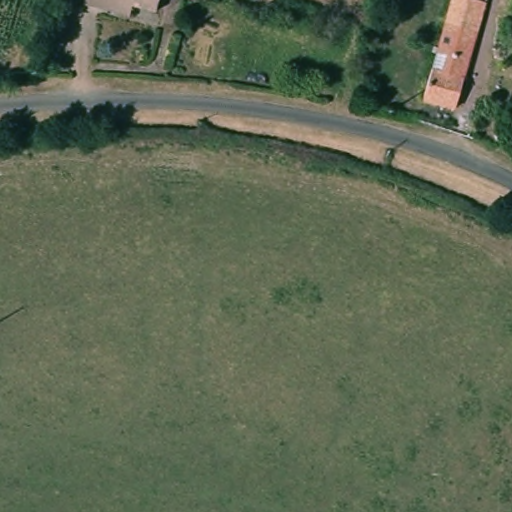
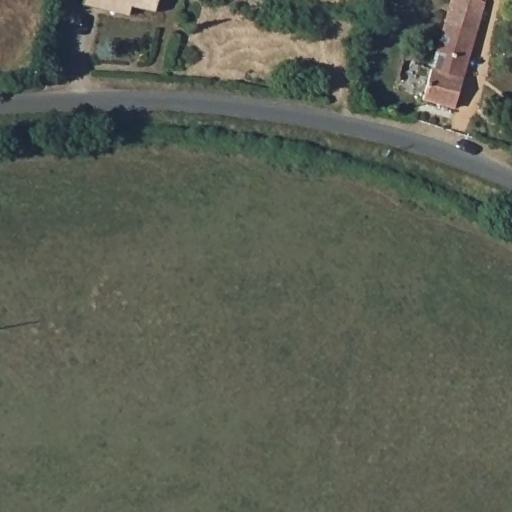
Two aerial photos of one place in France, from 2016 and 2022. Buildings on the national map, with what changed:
unchanged [(158,7),(135,2),(133,11),(89,1),(89,0),(160,0),(158,7)]
unchanged [(460,105),(430,97),(455,0),(487,0),(460,105)]

